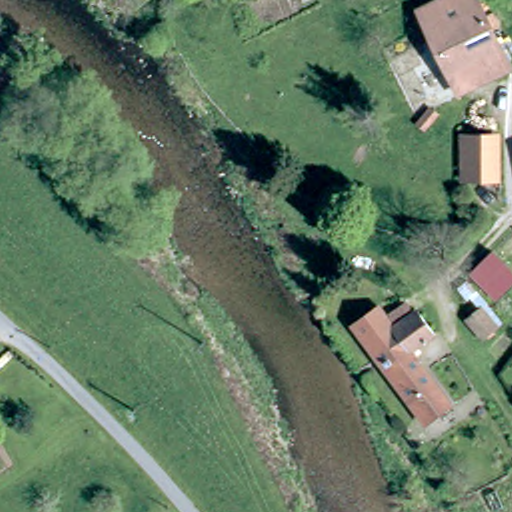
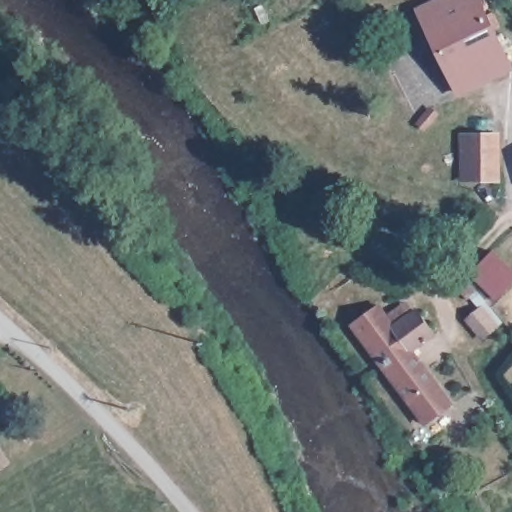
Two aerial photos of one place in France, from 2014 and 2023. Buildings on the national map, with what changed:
unchanged [(458,89),(425,17),(458,0),(480,0),(512,69),(512,74),(463,97),(458,90),(458,89)]
unchanged [(495,178),(462,177),(462,131),(473,131),(473,132),(496,131),(497,162),(496,175),(495,178)]
unchanged [(500,304),(476,280),(499,257),(512,270),(512,292),(500,304)]
unchanged [(452,410),(425,430),(353,327),(360,323),(357,317),(367,311),(370,315),(377,310),(393,332),(417,316),(433,338),(411,355),(452,410)]
unchanged [(500,335),(485,343),(472,324),(487,316),(500,335)]

